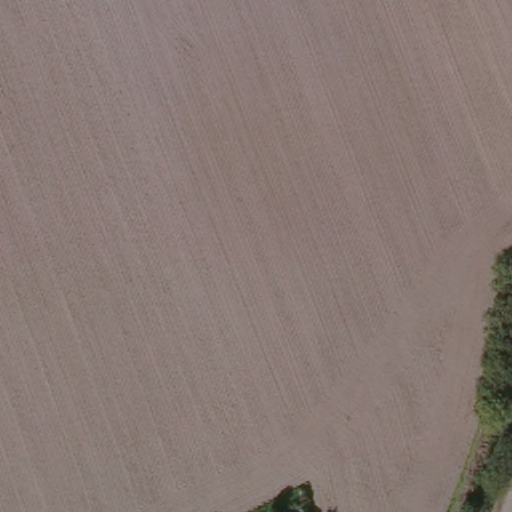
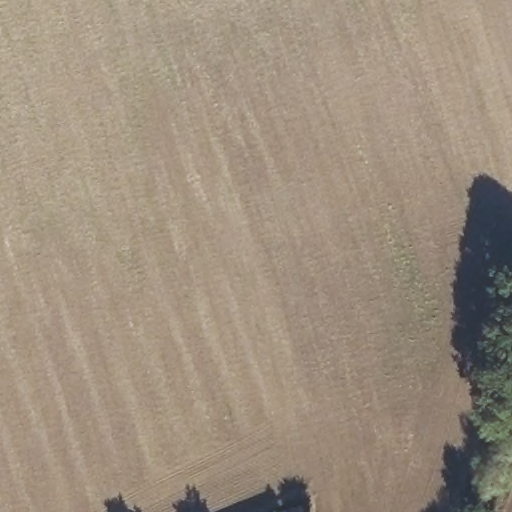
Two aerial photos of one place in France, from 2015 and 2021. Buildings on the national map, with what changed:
[]

